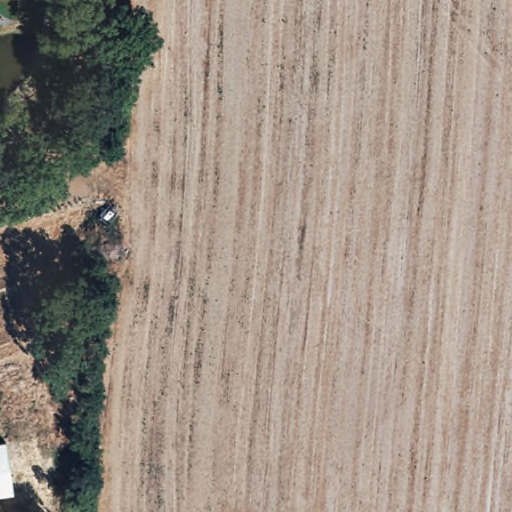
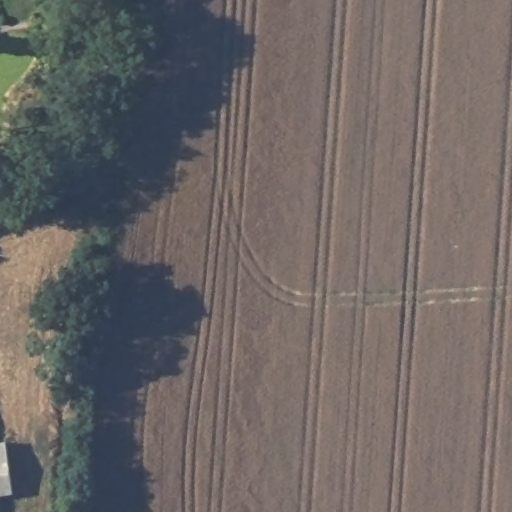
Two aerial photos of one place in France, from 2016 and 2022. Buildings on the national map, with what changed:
unchanged [(12,493),(0,496),(0,441),(6,440),(12,493)]

